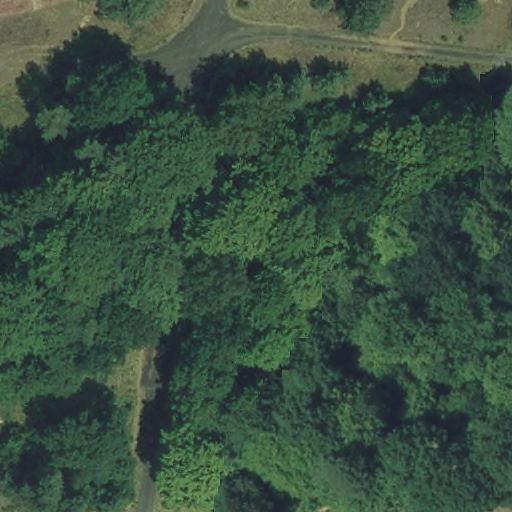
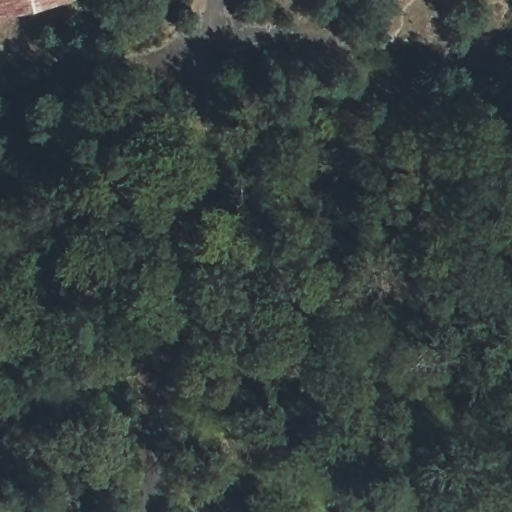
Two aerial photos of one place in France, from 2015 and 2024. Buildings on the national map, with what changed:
unchanged [(74,0),(0,19),(0,0),(74,0)]

